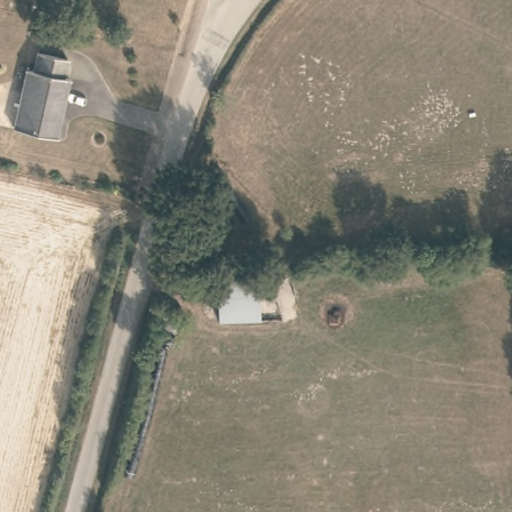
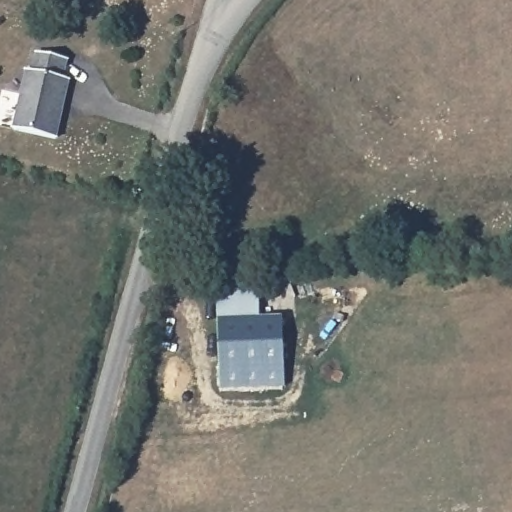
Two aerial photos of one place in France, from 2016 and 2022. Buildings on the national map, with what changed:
unchanged [(60,137),(16,129),(29,68),(34,69),(38,51),(70,58),(66,76),(72,78),(60,137)]
unchanged [(262,312),(220,314),(220,289),(260,288),(262,312)]
new [(220,314),(260,312),(260,317),(283,316),(284,386),(219,388),(220,314)]

